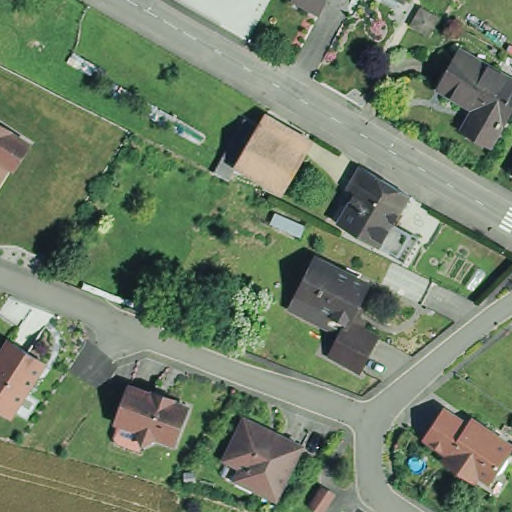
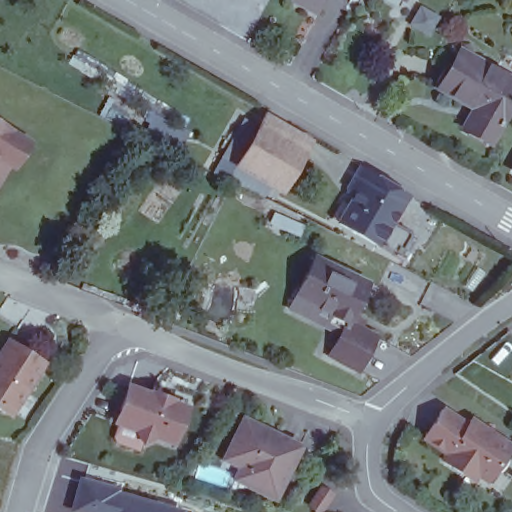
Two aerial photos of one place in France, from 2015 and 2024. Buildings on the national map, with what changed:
unchanged [(295,0),(335,0),(329,20),(293,7),(295,0)]
unchanged [(373,0),(376,0),(375,1),(373,0)]
unchanged [(410,29),(422,6),(447,17),(437,41),(410,29)]
unchanged [(512,88),(512,102),(485,148),(458,132),(470,112),(435,92),(456,56),(512,88)]
unchanged [(28,142),(14,165),(0,156),(0,124),(28,142)]
unchanged [(237,164),(259,126),(282,139),(260,177),(237,164)]
unchanged [(305,153),(283,191),(260,177),(282,139),(305,153)]
unchanged [(340,210),(347,214),(356,199),(348,194),(361,172),(408,199),(377,251),(340,227),(332,224),(340,210)]
unchanged [(291,297),(315,248),(367,273),(342,322),(326,314),(291,297)]
unchanged [(323,327),(322,326),(322,325),(322,323),(326,314),(342,322),(370,337),(353,370),(325,356),(335,333),(325,328),(323,327)]
unchanged [(12,422),(0,414),(0,352),(7,340),(52,366),(12,422)]
unchanged [(125,386),(147,395),(148,392),(168,400),(167,402),(182,407),(169,442),(152,436),(138,442),(132,428),(112,422),(125,386)]
unchanged [(461,477),(443,465),(448,458),(424,442),(443,413),(467,430),(471,424),(482,432),(512,452),(489,486),(478,478),(473,485),(461,477)]
unchanged [(237,467),(220,458),(240,418),(295,446),(270,497),(248,487),(231,478),(237,467)]
new [(187,511),(186,512),(72,512),(80,478),(187,511)]
unchanged [(323,492),(332,498),(323,512),(312,512),(310,511),(323,492)]

